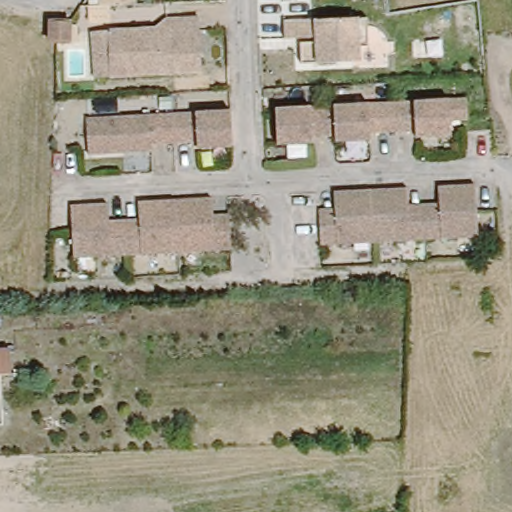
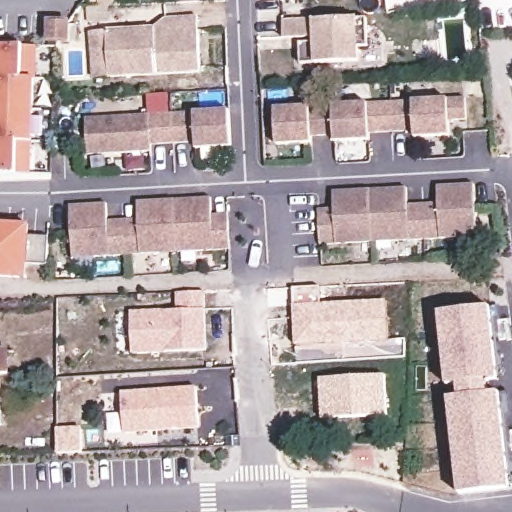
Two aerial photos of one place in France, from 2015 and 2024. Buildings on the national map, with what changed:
unchanged [(89,29),(104,28),(137,25),(152,24),(172,14),(202,11),(204,66),(105,74),(90,75),(89,29)]
unchanged [(369,39),(362,41),(363,58),(303,64),(299,39),(288,39),(287,18),(365,17),(369,39)]
unchanged [(44,23),(63,23),(60,42),(51,43),(41,43),(44,23)]
new [(34,47),(32,79),(31,79),(27,142),(26,142),(23,175),(0,174),(0,45),(34,47)]
unchanged [(472,112),(452,113),(453,129),(409,132),(409,124),(375,126),(375,133),(332,137),(331,129),(315,130),(315,138),(272,140),(271,104),(471,90),(472,112)]
unchanged [(195,146),(194,139),(160,142),(160,149),(87,154),(87,117),(236,107),(237,143),(195,146)]
unchanged [(328,186),(406,180),(406,199),(440,195),(438,177),(478,174),(481,229),(313,242),(313,214),(312,207),(329,205),(328,186)]
unchanged [(214,195),(215,214),(231,213),(231,220),(232,248),(71,258),(68,206),(106,204),(107,221),(138,219),(137,202),(214,195)]
new [(30,226),(29,239),(0,238),(0,224),(30,226)]
new [(29,239),(50,240),(48,266),(27,265),(27,278),(0,277),(0,238),(29,239)]
new [(131,312),(178,312),(179,296),(208,295),(210,352),(133,356),(131,312)]
new [(388,299),(389,340),(295,346),(293,304),(388,299)]
new [(449,394),(459,393),(458,380),(447,381),(439,309),(490,303),(496,302),(501,350),(505,350),(508,375),(498,375),(488,377),(489,390),(500,388),(505,387),(512,443),(512,484),(511,484),(460,490),(449,394)]
unchanged [(16,348),(18,369),(0,370),(0,349),(16,348)]
unchanged [(4,427),(0,427),(0,370),(4,427)]
new [(386,373),(387,414),(320,416),(319,376),(386,373)]
new [(199,390),(201,430),(128,433),(125,394),(199,390)]
demolished [(512,409),(512,423),(505,418),(512,409)]

